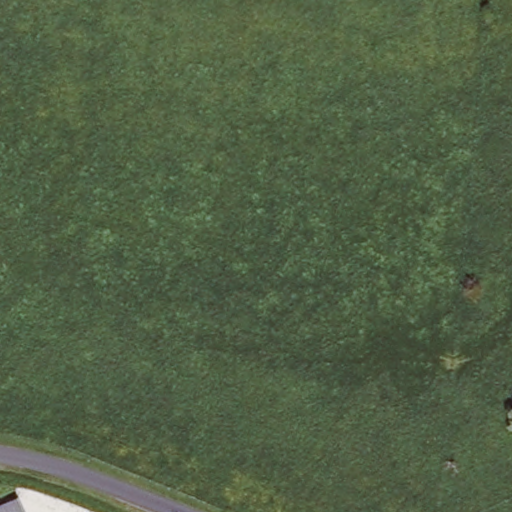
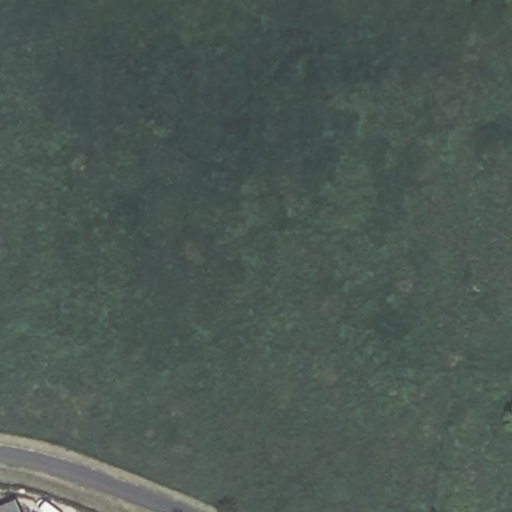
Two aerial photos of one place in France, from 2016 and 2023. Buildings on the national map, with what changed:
unchanged [(22,512),(0,512),(0,508),(18,501),(22,512)]

